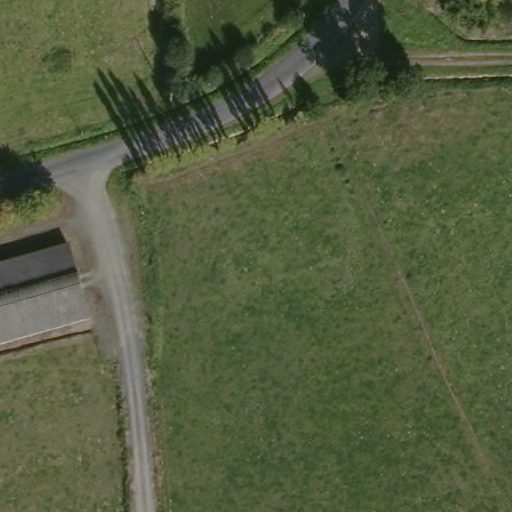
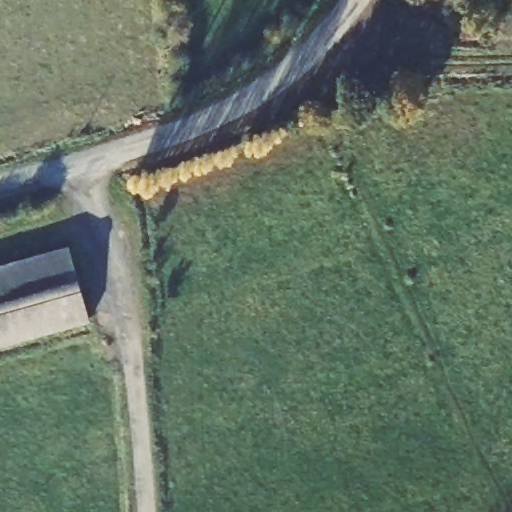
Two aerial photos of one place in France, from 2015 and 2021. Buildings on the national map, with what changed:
unchanged [(86,321),(0,346),(0,270),(66,252),(86,321)]

